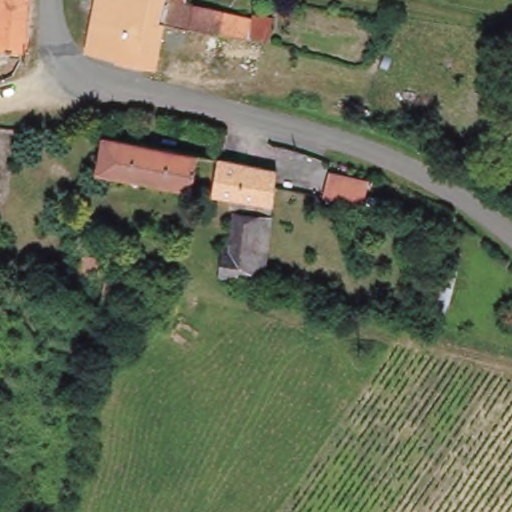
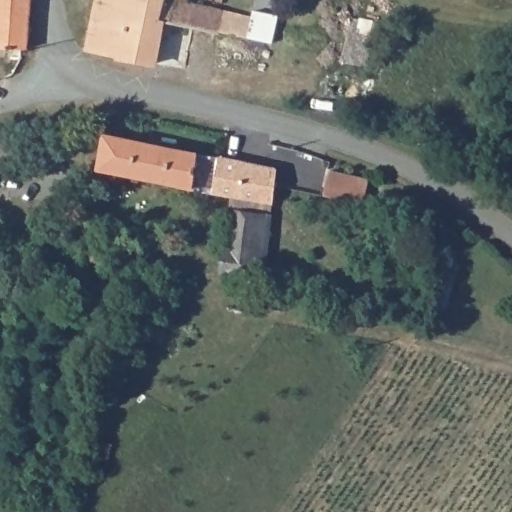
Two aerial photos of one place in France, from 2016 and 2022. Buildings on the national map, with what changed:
unchanged [(27,50),(0,48),(0,0),(31,0),(27,50)]
unchanged [(182,1),(246,17),(248,11),(270,16),(265,42),(240,39),(165,24),(155,68),(84,49),(91,0),(182,0),(182,1)]
unchanged [(100,131),(199,154),(190,191),(94,172),(100,131)]
unchanged [(217,158),(275,170),(268,213),(275,215),(265,278),(216,277),(219,247),(229,247),(233,202),(208,195),(217,158)]
unchanged [(365,179),(360,204),(320,197),(325,174),(365,179)]

